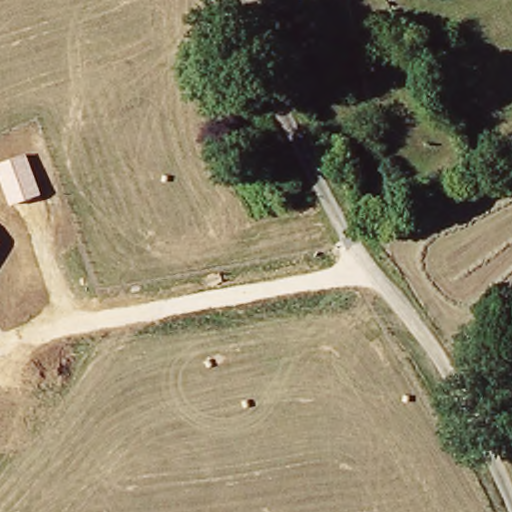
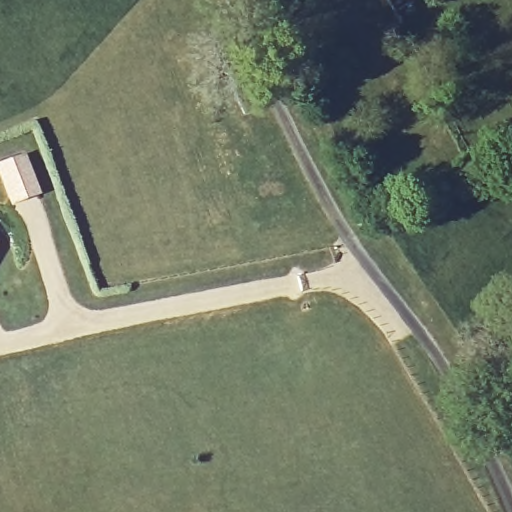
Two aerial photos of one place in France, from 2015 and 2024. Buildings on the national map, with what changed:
unchanged [(25,154),(40,195),(10,205),(0,178),(0,162),(25,154)]
unchanged [(512,339),(512,369),(497,355),(512,339)]

